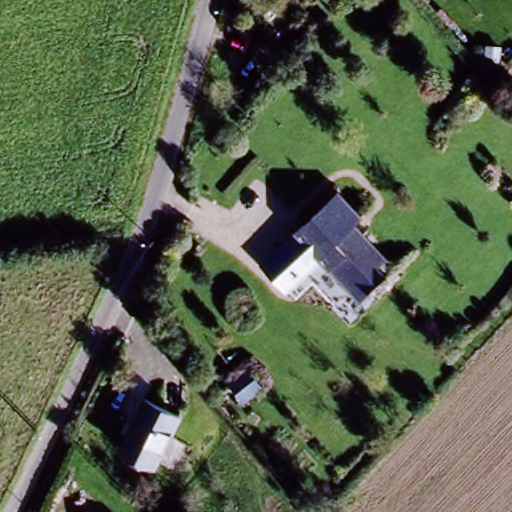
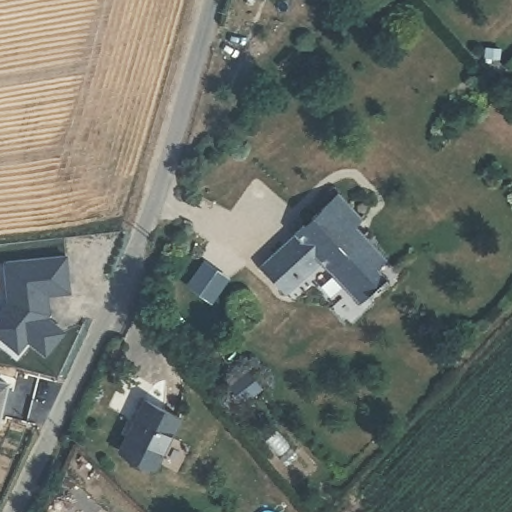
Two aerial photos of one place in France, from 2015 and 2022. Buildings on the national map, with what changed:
unchanged [(349,295),(317,261),(283,293),(261,268),(301,229),(304,232),(311,223),(336,198),(358,221),(349,230),(358,240),(363,238),(382,259),(386,262),(377,272),(388,283),(370,300),(367,298),(358,306),(349,295)]
new [(70,291),(46,294),(48,317),(65,331),(45,354),(29,340),(19,352),(0,337),(0,312),(9,301),(4,262),(66,255),(70,291)]
unchanged [(265,373),(250,387),(236,371),(252,357),(265,373)]
unchanged [(179,419),(155,468),(122,451),(146,403),(179,419)]

